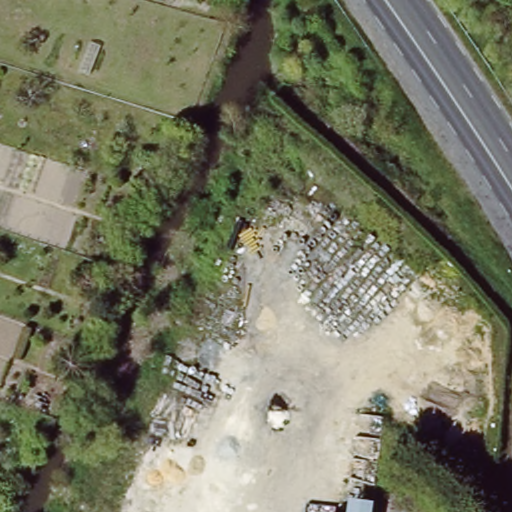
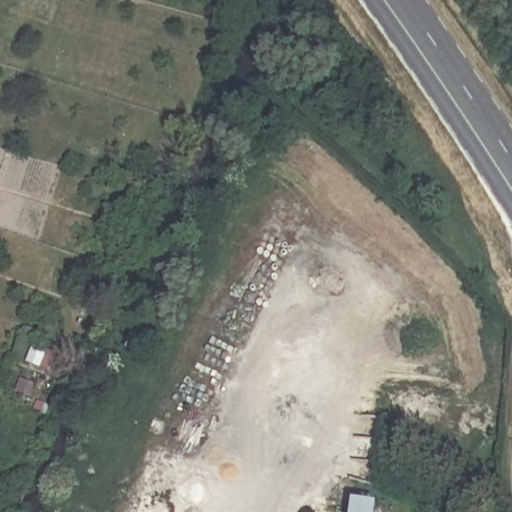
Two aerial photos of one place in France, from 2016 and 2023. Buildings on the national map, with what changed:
unchanged [(344,500),(372,503),(372,512),(342,512),(344,500)]

